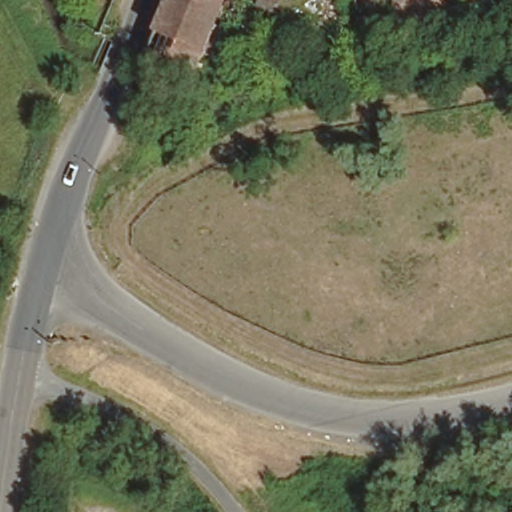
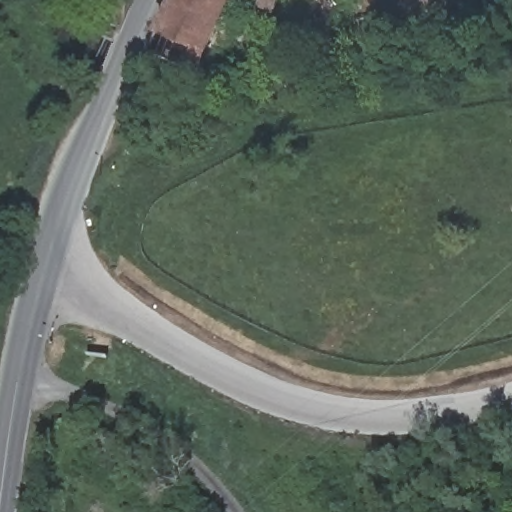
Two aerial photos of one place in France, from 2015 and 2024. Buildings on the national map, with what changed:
unchanged [(221,19),(198,76),(149,56),(172,0),(229,0),(221,19)]

